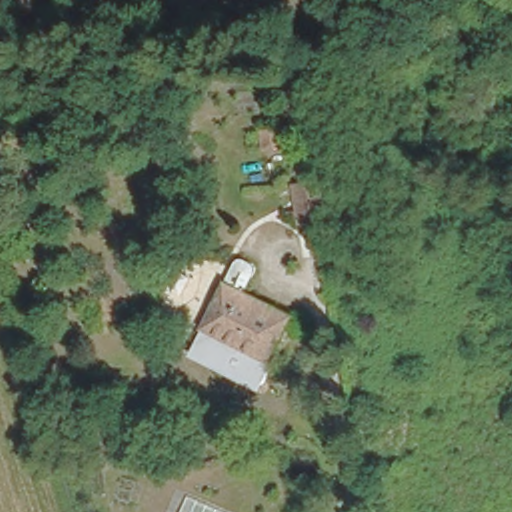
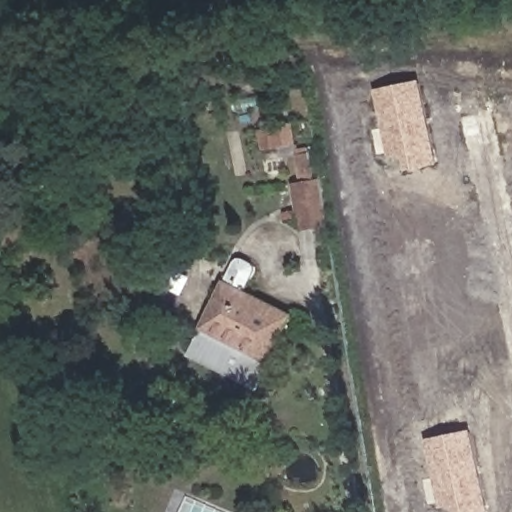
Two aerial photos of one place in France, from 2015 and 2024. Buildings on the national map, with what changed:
new [(66,77),(127,79),(127,94),(81,92),(81,108),(65,108),(66,77)]
new [(420,80),(437,163),(407,169),(405,155),(388,157),(375,89),(420,80)]
unchanged [(296,224),(287,176),(295,175),(291,145),(306,143),(310,142),(315,172),(322,221),(296,224)]
unchanged [(240,252),(242,253),(246,254),(250,261),(250,269),(240,290),(287,312),(265,359),(199,326),(228,262),(234,256),(240,252)]
new [(472,429),(489,512),(456,512),(455,505),(440,507),(427,440),(472,429)]

